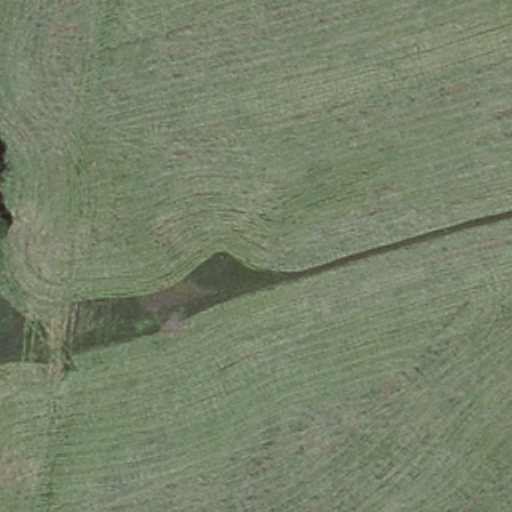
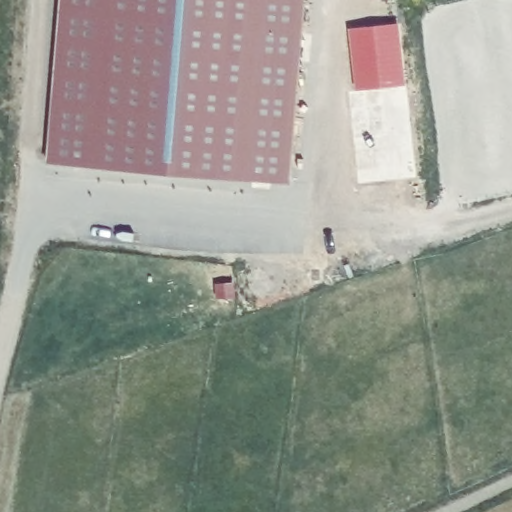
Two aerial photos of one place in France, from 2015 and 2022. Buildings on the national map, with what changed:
new [(42,168),(53,0),(298,0),(287,184),(42,168)]

